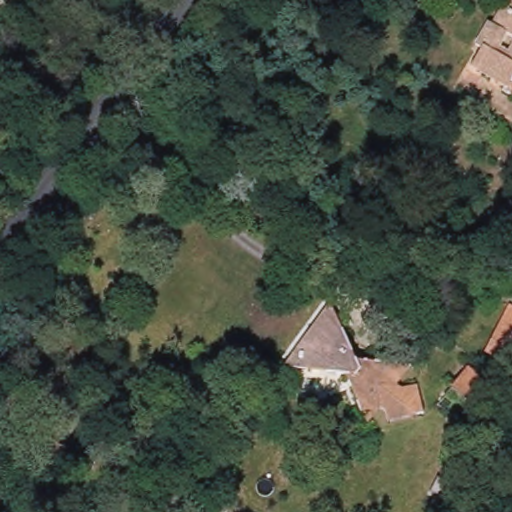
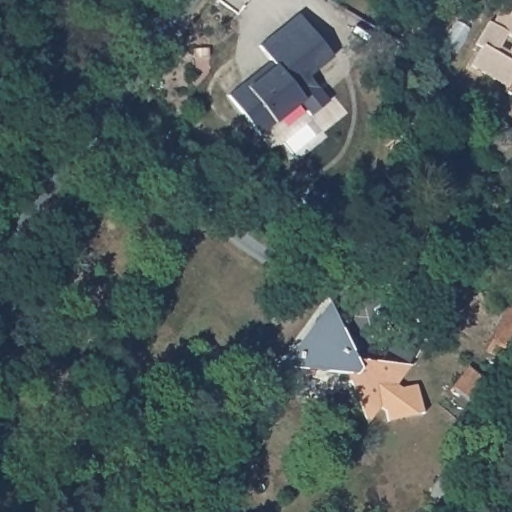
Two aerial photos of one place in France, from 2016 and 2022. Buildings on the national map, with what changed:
unchanged [(479,54),(469,49),(483,25),(488,27),(503,0),(512,0),(512,77),(505,91),(469,71),(479,54)]
new [(228,98),(244,86),(246,89),(275,65),(260,47),(281,30),(280,28),(299,14),(332,59),(309,76),(329,102),(310,116),(301,104),(274,123),(259,135),(228,98)]
unchanged [(507,306),(512,308),(512,365),(481,350),(507,306)]
unchanged [(304,366),(303,351),(331,316),(343,325),(363,361),(409,369),(398,382),(402,392),(415,387),(427,413),(390,428),(385,418),(374,413),(363,427),(344,383),(350,376),(304,366)]
unchanged [(467,370),(499,395),(483,413),(451,389),(467,370)]

